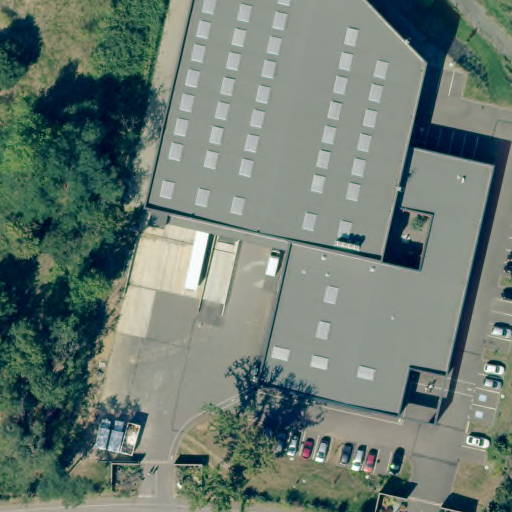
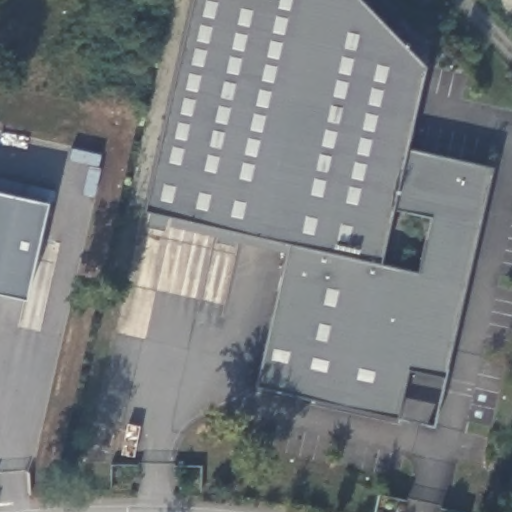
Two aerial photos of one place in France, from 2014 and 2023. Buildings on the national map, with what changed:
unchanged [(149,221),(150,211),(144,210),(191,0),(361,0),(423,64),(405,150),(487,168),(441,377),(406,370),(394,417),(257,386),(284,250),(149,221)]
new [(26,298),(0,292),(0,191),(48,202),(26,298)]

